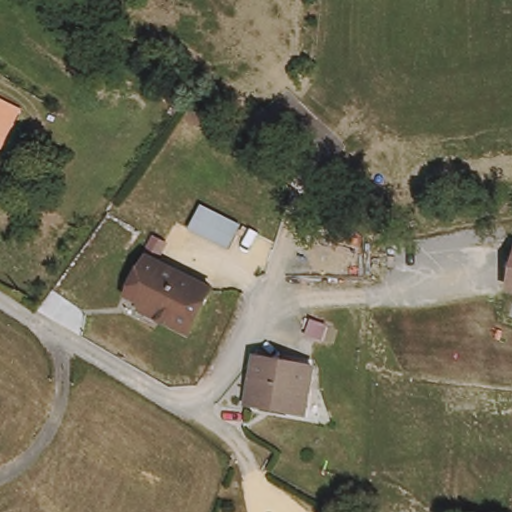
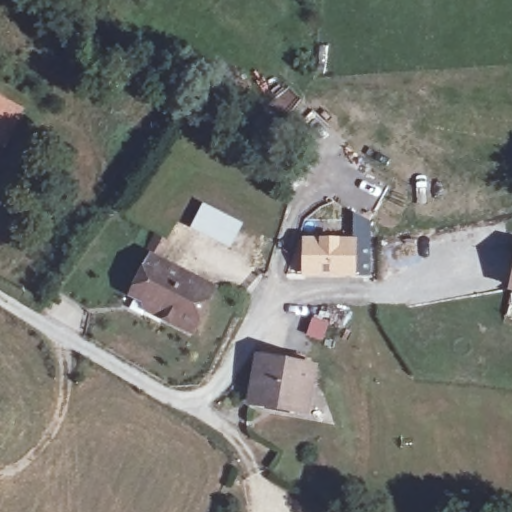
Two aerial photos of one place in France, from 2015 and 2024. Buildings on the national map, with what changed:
unchanged [(168,100),(160,94),(167,83),(175,89),(168,100)]
unchanged [(0,145),(0,99),(25,110),(6,148),(0,145)]
unchanged [(300,143),(292,153),(269,133),(277,123),(300,143)]
unchanged [(231,248),(192,229),(204,206),(242,225),(231,248)]
new [(357,239),(356,278),(303,277),(304,238),(357,239)]
unchanged [(194,333),(165,318),(168,311),(134,294),(152,258),(216,290),(194,333)]
unchanged [(512,264),(512,293),(505,291),(512,264)]
unchanged [(329,342),(306,334),(312,319),(335,327),(329,342)]
unchanged [(307,413),(251,403),(259,357),(316,368),(307,413)]

